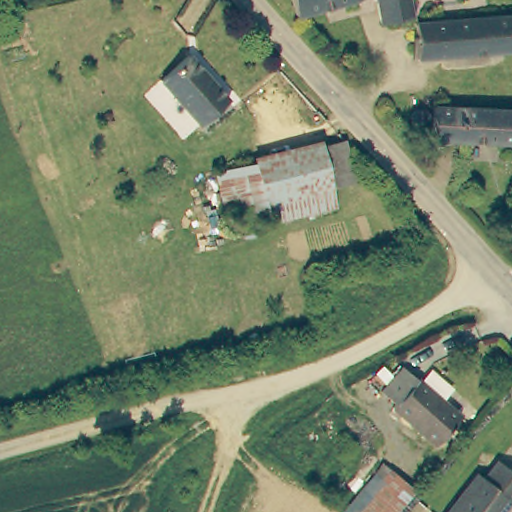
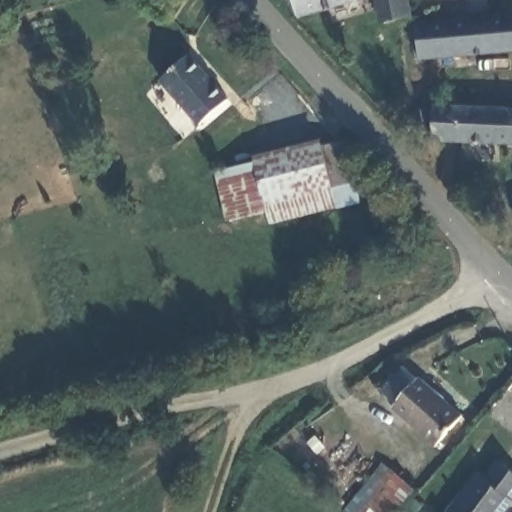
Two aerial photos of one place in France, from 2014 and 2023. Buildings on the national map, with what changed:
unchanged [(294,0),(360,0),(358,0),(298,16),(294,0)]
unchanged [(410,19),(402,21),(387,24),(385,18),(381,0),(406,0),(410,19)]
unchanged [(422,61),(418,25),(512,17),(512,52),(422,61)]
unchanged [(193,55),(231,101),(204,125),(165,79),(193,55)]
unchanged [(431,135),(432,104),(512,108),(512,141),(431,135)]
unchanged [(271,220),(267,206),(226,217),(219,171),(323,144),(346,138),(356,176),(333,182),(338,202),(271,220)]
unchanged [(402,405),(390,395),(408,373),(420,383),(422,380),(466,417),(441,446),(397,410),(402,405)]
unchanged [(383,458),(421,491),(402,512),(353,512),(343,503),(383,458)]
unchanged [(480,476),(497,463),(512,476),(512,499),(501,512),(445,512),(472,471),(480,476)]

